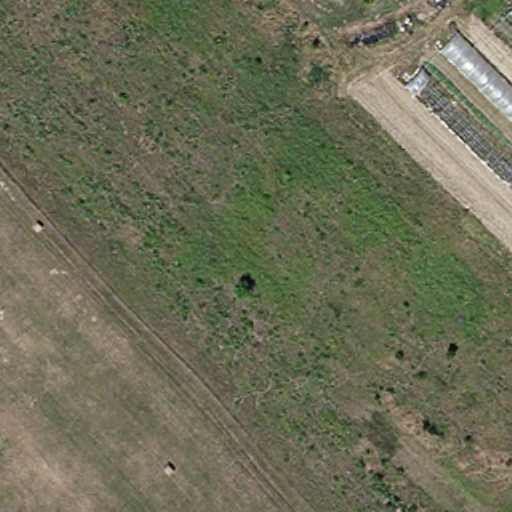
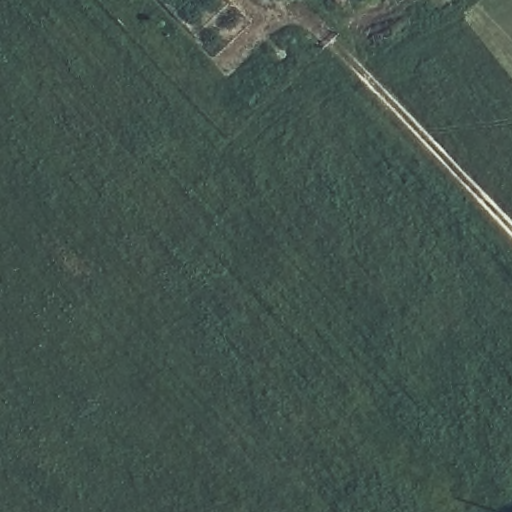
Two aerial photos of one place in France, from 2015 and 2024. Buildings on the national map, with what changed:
demolished [(442,48),(457,60),(469,47),(476,52),(512,12),(512,180),(410,81),(442,48)]

